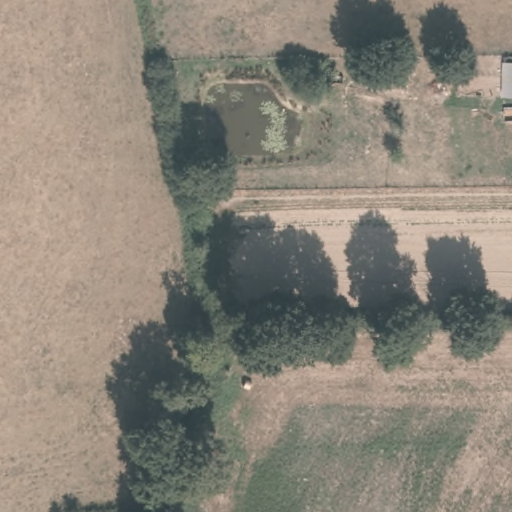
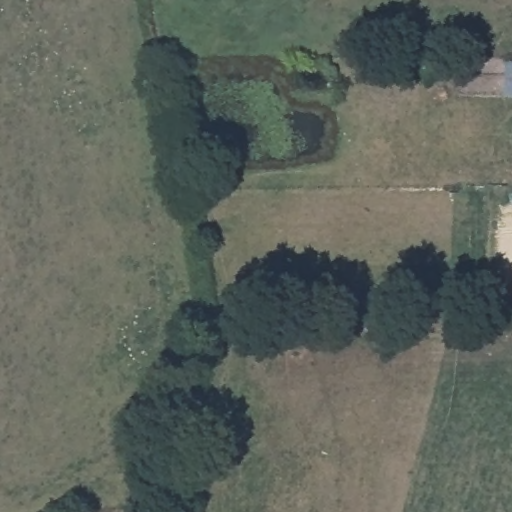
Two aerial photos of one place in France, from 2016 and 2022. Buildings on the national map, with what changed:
unchanged [(512,92),(507,92),(507,60),(512,60),(512,92)]

